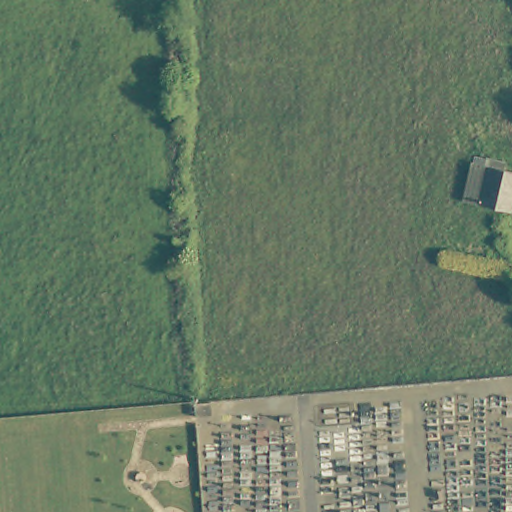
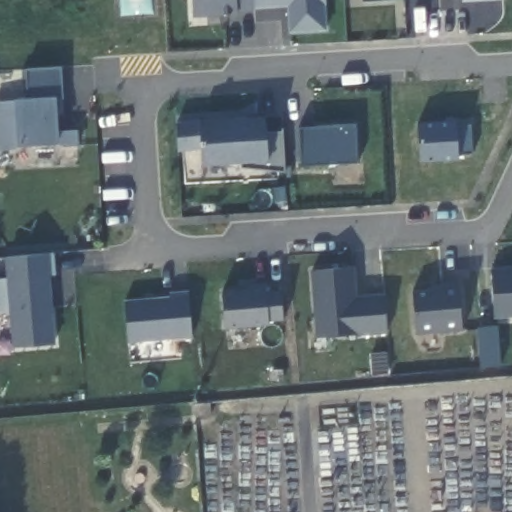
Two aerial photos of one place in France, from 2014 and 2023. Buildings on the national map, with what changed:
new [(237,9),(238,13),(192,15),(191,0),(325,0),(327,29),(290,31),(289,5),(237,9)]
new [(64,95),(57,96),(55,96),(29,98),(27,69),(61,67),(64,95)]
new [(57,96),(59,129),(79,129),(79,145),(64,145),(60,141),(59,143),(18,145),(15,148),(0,150),(0,101),(57,96)]
new [(243,166),(243,161),(203,164),(199,119),(266,115),(268,128),(283,127),(286,171),(243,166)]
new [(457,124),(471,124),(473,153),(458,154),(458,159),(420,161),(418,122),(456,121),(457,124)]
new [(301,164),(300,126),(356,124),(358,161),(301,164)]
demolished [(512,172),(504,209),(473,202),(482,161),(512,167),(512,172)]
new [(55,252),(57,275),(51,275),(56,343),(14,346),(11,311),(0,312),(0,278),(8,277),(6,257),(55,252)]
new [(386,293),(387,332),(317,336),(311,269),(356,266),(358,295),(386,293)]
new [(512,315),(496,316),(492,267),(512,266),(512,315)]
new [(417,333),(414,290),(433,289),(433,284),(442,283),(442,281),(459,280),(463,330),(417,333)]
new [(248,287),(248,283),(266,282),(266,289),(281,287),(284,319),(269,320),(269,324),(226,328),(222,289),(248,287)]
new [(172,295),(171,290),(188,289),(193,336),(128,341),(126,299),(172,295)]
unchanged [(213,403),(214,418),(194,420),(193,405),(213,403)]

